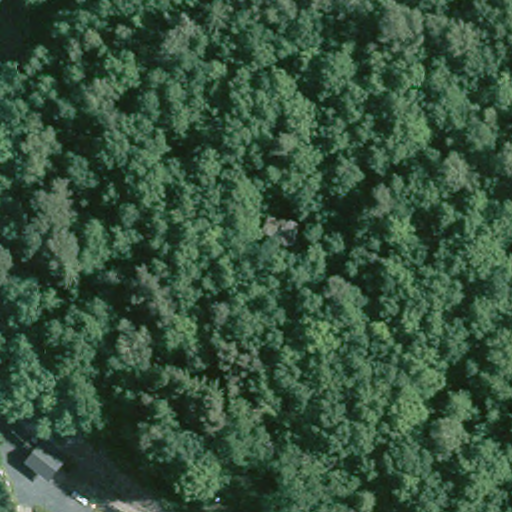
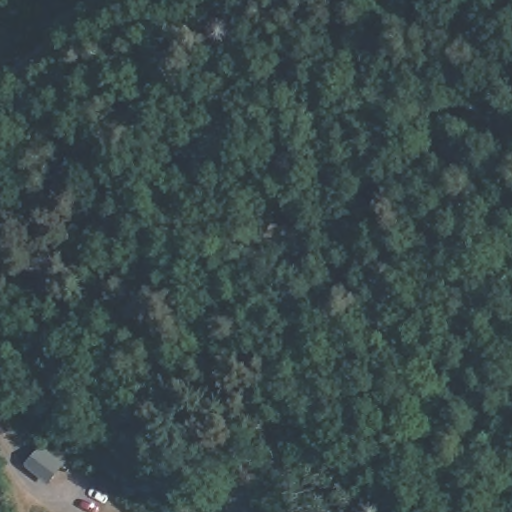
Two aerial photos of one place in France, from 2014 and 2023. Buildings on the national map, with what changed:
unchanged [(302,235),(293,255),(262,244),(272,226),(302,235)]

